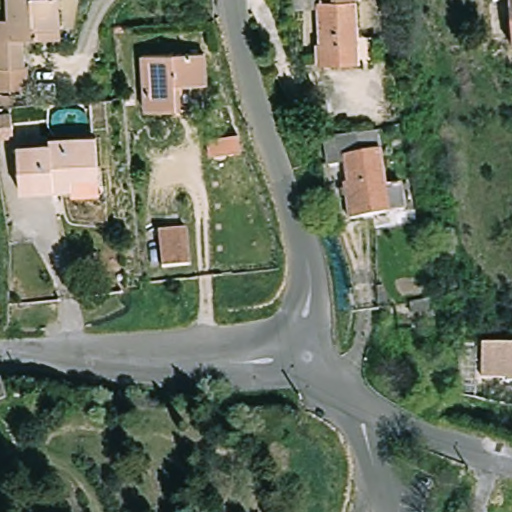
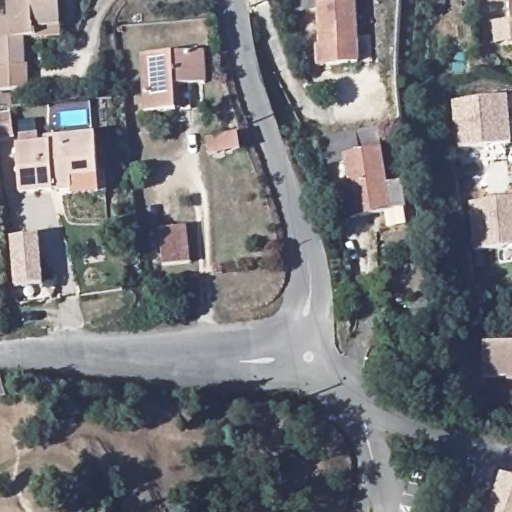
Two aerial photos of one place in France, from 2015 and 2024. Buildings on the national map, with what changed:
unchanged [(37,36),(28,37),(28,65),(31,65),(31,88),(2,90),(0,33),(0,18),(13,18),(12,0),(63,0),(64,28),(65,37),(37,38),(37,36)]
unchanged [(322,70),(321,49),(324,49),(322,14),(298,15),(297,0),(359,0),(361,42),(362,68),(359,69),(322,70)]
unchanged [(149,111),(146,55),(208,52),(210,84),(178,86),(180,110),(149,111)]
unchanged [(18,105),(0,106),(0,94),(17,93),(18,105)]
new [(507,96),(511,145),(454,150),(450,101),(507,96)]
unchanged [(18,135),(0,138),(0,115),(13,113),(18,135)]
unchanged [(331,163),(329,137),(328,136),(383,127),(384,138),(391,185),(407,183),(410,209),(355,218),(349,182),(353,182),(350,160),(331,163)]
unchanged [(236,134),(240,150),(208,156),(205,139),(236,134)]
unchanged [(15,146),(48,144),(48,139),(95,136),(98,177),(71,178),(72,189),(18,193),(15,146)]
new [(512,198),(512,247),(472,250),(468,202),(512,198)]
unchanged [(158,229),(186,226),(190,262),(163,265),(158,229)]
unchanged [(38,236),(42,285),(15,287),(11,239),(38,236)]
unchanged [(433,310),(411,314),(410,304),(431,300),(433,310)]
unchanged [(91,324),(85,325),(85,322),(91,321),(91,324)]
unchanged [(46,328),(40,329),(40,326),(46,326),(46,328)]
unchanged [(482,375),(482,342),(512,343),(512,379),(507,379),(507,376),(482,375)]

